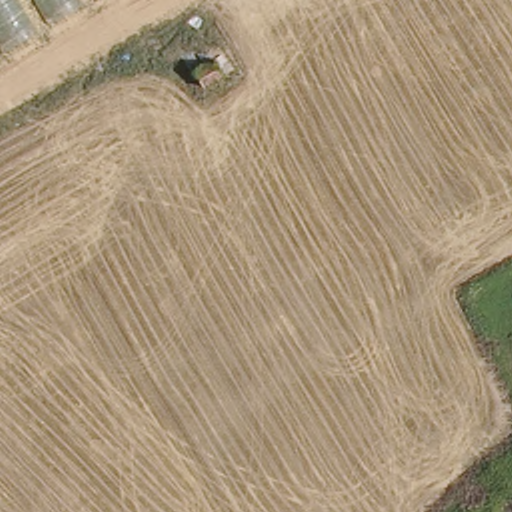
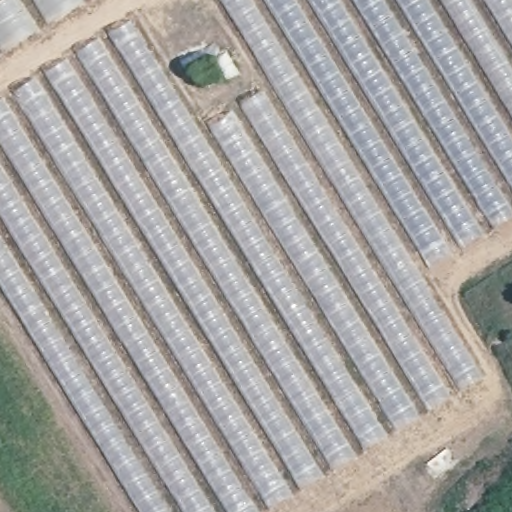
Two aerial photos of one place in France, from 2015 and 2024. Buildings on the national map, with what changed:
unchanged [(87,0),(0,53),(0,0),(87,0)]
new [(478,378),(270,512),(130,512),(0,298),(0,102),(128,21),(196,131),(265,86),(213,0),(512,0),(512,220),(421,278),(478,378)]
unchanged [(214,64),(223,79),(202,92),(192,76),(214,64)]

